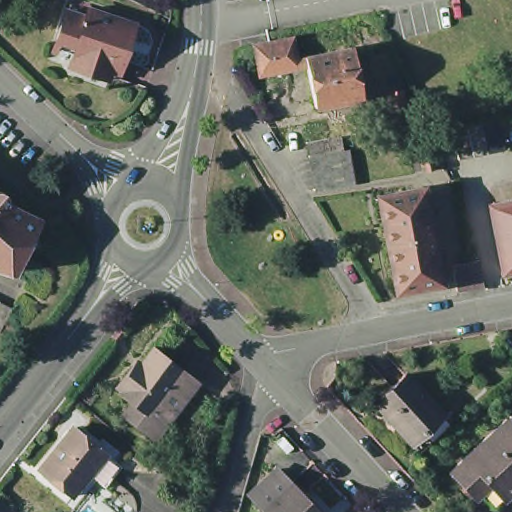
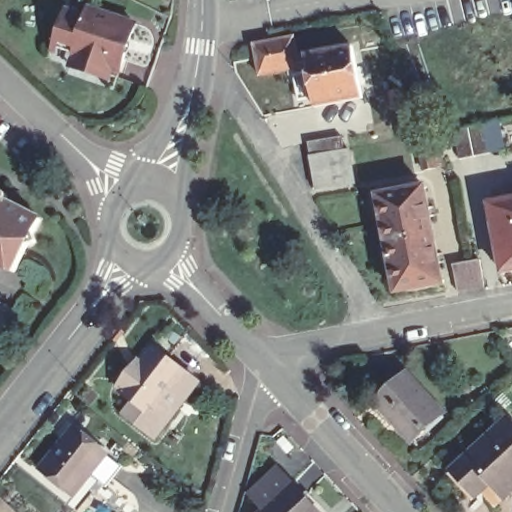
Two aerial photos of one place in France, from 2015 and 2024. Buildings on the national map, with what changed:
unchanged [(136,25),(120,77),(113,74),(110,80),(71,65),(75,54),(55,45),(68,8),(88,15),(90,7),(136,25)]
unchanged [(292,40),(297,65),(306,64),(305,60),(352,52),(361,101),(315,110),(307,71),(260,80),(256,60),(254,47),(268,45),(286,41),(292,40)]
unchanged [(391,91),(404,89),(406,107),(394,110),(391,91)]
unchanged [(488,152),(458,159),(453,129),(482,123),(488,152)]
unchanged [(345,140),(347,155),(313,161),(311,146),(345,140)]
unchanged [(420,150),(432,147),(435,167),(423,169),(420,150)]
unchanged [(357,188),(318,194),(313,161),(353,155),(357,188)]
unchanged [(442,288),(395,297),(377,199),(423,190),(442,288)]
unchanged [(4,194),(7,199),(6,203),(41,220),(36,232),(36,245),(29,247),(16,272),(0,264),(0,263),(1,262),(0,262),(0,192),(4,194)]
unchanged [(489,209),(512,204),(512,275),(502,277),(489,209)]
unchanged [(484,287),(456,292),(451,265),(479,260),(484,287)]
unchanged [(9,308),(0,325),(0,303),(9,308)]
unchanged [(138,410),(125,399),(127,397),(123,394),(143,370),(147,373),(159,356),(174,338),(187,348),(173,367),(189,380),(154,422),(138,410)]
unchanged [(206,392),(161,446),(129,421),(138,410),(154,422),(189,380),(206,392)]
unchanged [(427,437),(411,451),(374,411),(405,382),(438,420),(423,433),(427,437)]
unchanged [(481,493),(474,486),(456,465),(512,413),(512,414),(512,489),(508,493),(499,501),(486,488),(481,493)]
unchanged [(90,478),(87,476),(70,497),(39,472),(75,430),(107,456),(90,478)]
unchanged [(262,511),(264,508),(251,492),(278,468),(292,483),(294,482),(321,512),(260,512),(262,511)]

